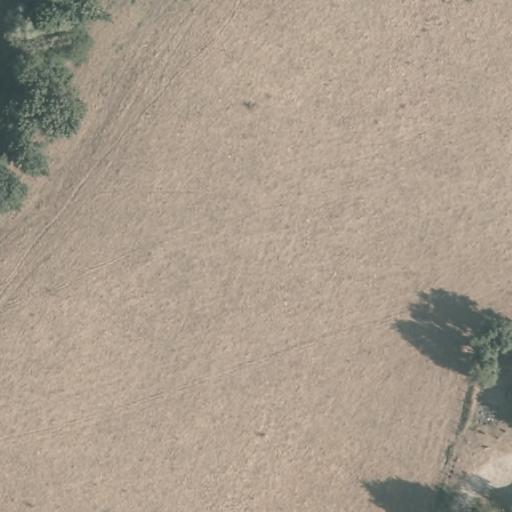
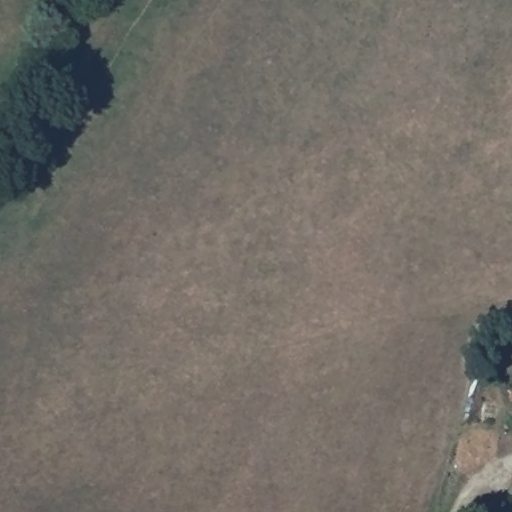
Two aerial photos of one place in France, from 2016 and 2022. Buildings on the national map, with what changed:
[]

